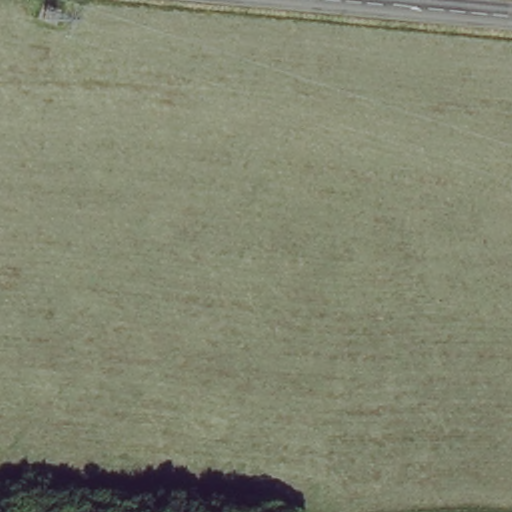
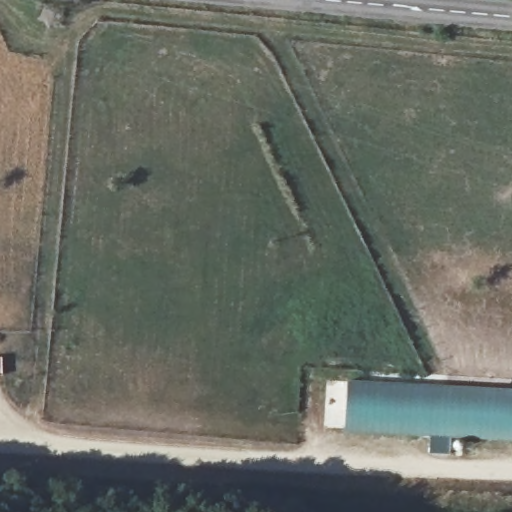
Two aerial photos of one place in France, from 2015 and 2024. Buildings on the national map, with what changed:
new [(512,390),(512,438),(345,429),(348,381),(512,390)]

